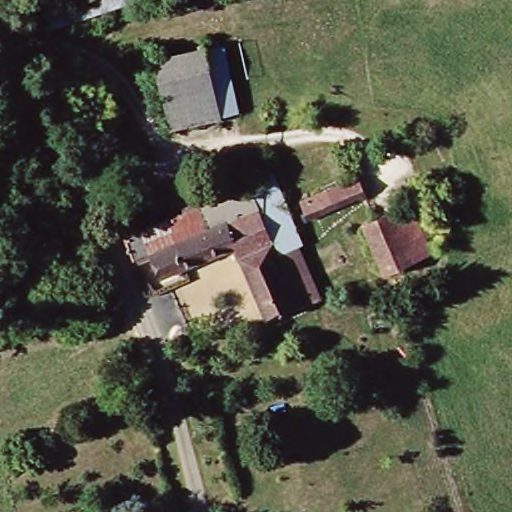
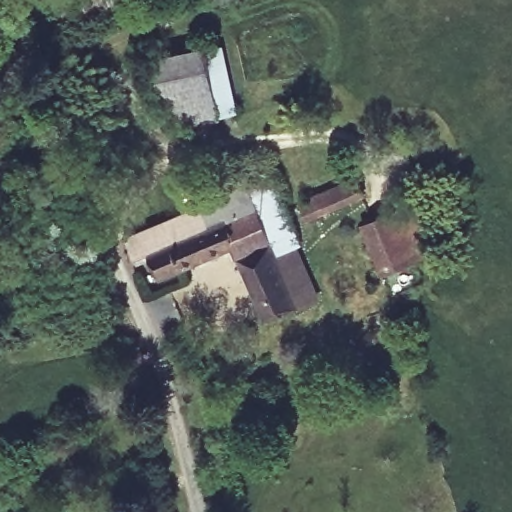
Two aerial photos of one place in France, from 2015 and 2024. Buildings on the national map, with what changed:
unchanged [(37,2),(42,0),(141,0),(47,33),(37,2)]
unchanged [(184,134),(158,65),(205,47),(231,117),(184,134)]
unchanged [(307,305),(290,311),(254,323),(232,250),(158,276),(151,254),(130,261),(123,237),(200,207),(200,202),(276,174),(297,244),(270,255),(272,260),(289,254),(307,305)]
unchanged [(352,179),(360,197),(308,220),(300,201),(352,179)]
unchanged [(377,273),(358,222),(404,206),(410,220),(417,217),(431,253),(377,273)]

